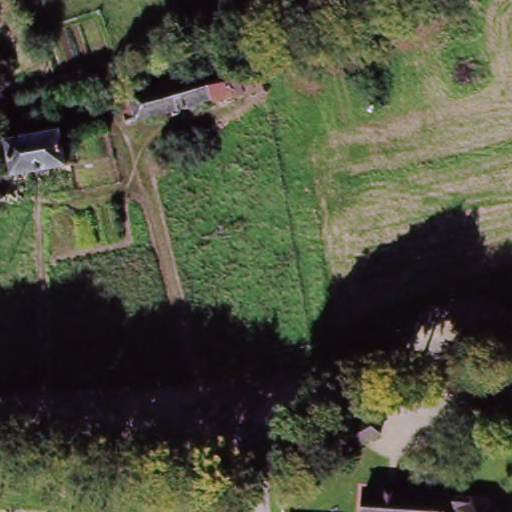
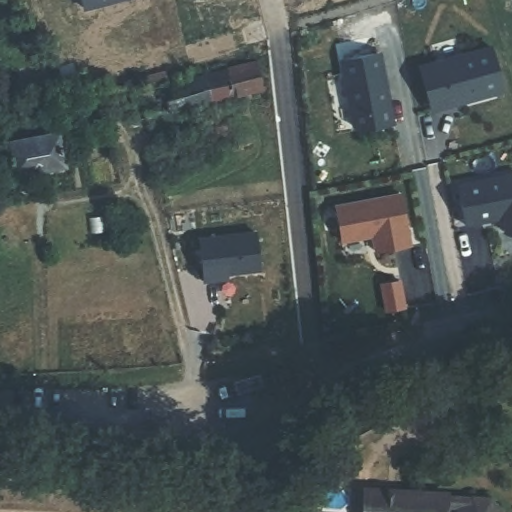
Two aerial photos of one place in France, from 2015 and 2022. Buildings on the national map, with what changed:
new [(486,49),(498,93),(432,111),(420,68),(486,49)]
new [(377,54),(381,71),(384,71),(394,125),(361,131),(353,126),(343,78),(346,77),(343,60),(377,54)]
unchanged [(118,106),(130,103),(129,98),(253,68),(260,95),(135,125),(124,127),(118,106)]
unchanged [(101,106),(95,82),(108,80),(113,103),(101,106)]
unchanged [(0,160),(13,158),(10,142),(62,132),(69,166),(16,175),(4,178),(0,160)]
new [(512,236),(506,233),(503,218),(466,226),(458,186),(512,175),(512,236)]
new [(401,195),(410,246),(376,252),(373,236),(342,242),(336,207),(401,195)]
new [(222,280),(204,283),(199,240),(256,233),(260,271),(228,275),(229,280),(222,280)]
unchanged [(330,415),(365,401),(382,439),(350,452),(330,415)]
unchanged [(358,485),(447,488),(447,512),(354,512),(358,485)]
new [(490,496),(505,511),(504,512),(455,512),(455,509),(447,509),(447,495),(490,496)]

